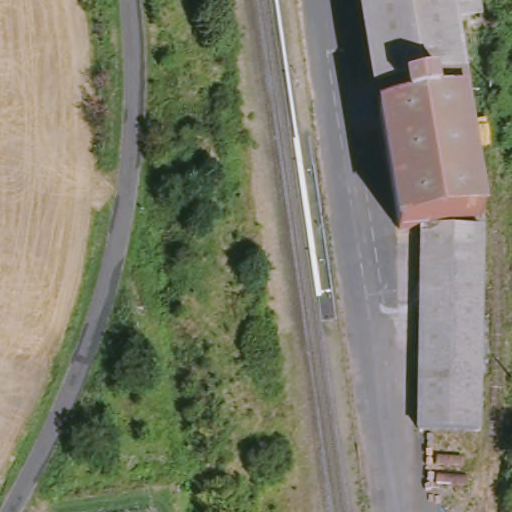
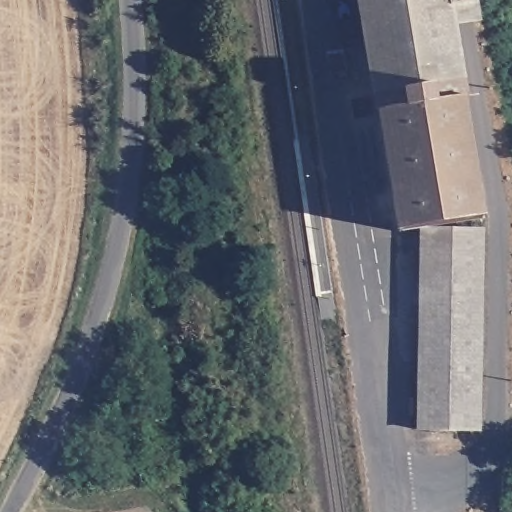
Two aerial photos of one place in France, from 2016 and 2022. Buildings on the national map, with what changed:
unchanged [(450,103),(469,221),(388,234),(354,0),(436,0),(441,34),(450,103)]
unchanged [(441,34),(436,0),(456,0),(462,30),(441,34)]
unchanged [(423,434),(433,235),(488,237),(480,437),(423,434)]

